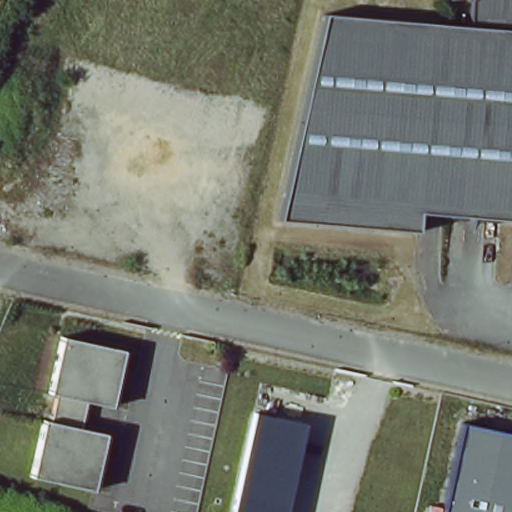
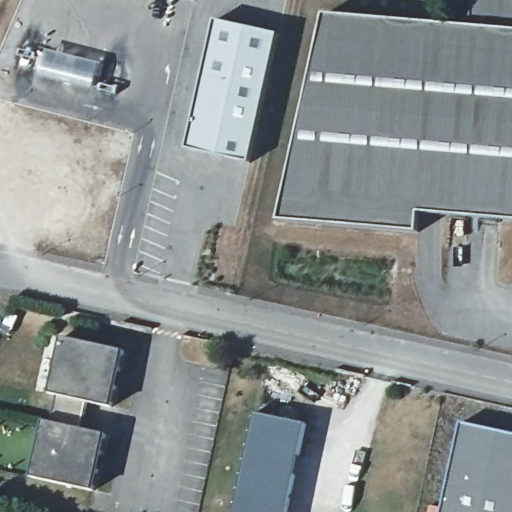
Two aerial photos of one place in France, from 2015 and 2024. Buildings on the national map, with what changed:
unchanged [(419,229),(279,221),(327,14),(471,25),(474,0),(512,0),(512,219),(420,213),(419,229)]
new [(277,27),(249,158),(184,144),(214,15),(277,27)]
new [(99,63),(94,89),(42,76),(45,49),(99,63)]
unchanged [(116,407),(94,404),(88,428),(109,432),(96,491),(28,478),(43,419),(52,419),(59,396),(48,394),(62,336),(129,349),(116,407)]
unchanged [(287,512),(234,512),(257,413),(308,423),(287,512)]
unchanged [(512,512),(444,512),(464,423),(512,434),(512,512)]

